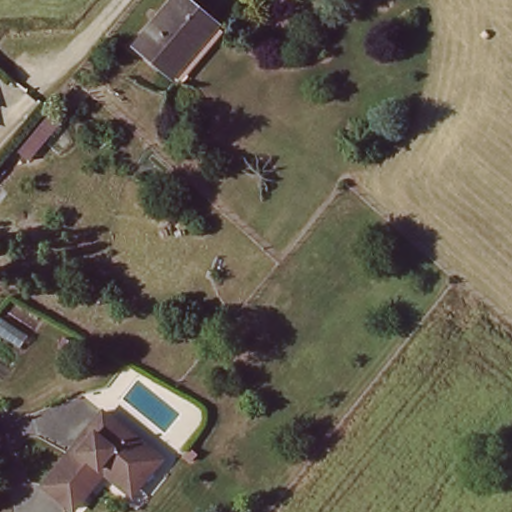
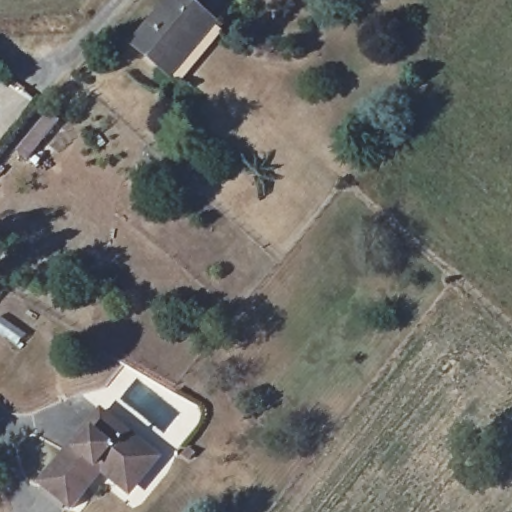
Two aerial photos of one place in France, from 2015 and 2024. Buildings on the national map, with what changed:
unchanged [(214,25),(174,72),(137,41),(172,0),(184,0),(214,25)]
unchanged [(69,115),(38,153),(28,143),(60,108),(69,115)]
unchanged [(126,494),(105,479),(101,474),(73,509),(43,485),(102,413),(126,432),(121,439),(130,448),(150,465),(126,494)]

